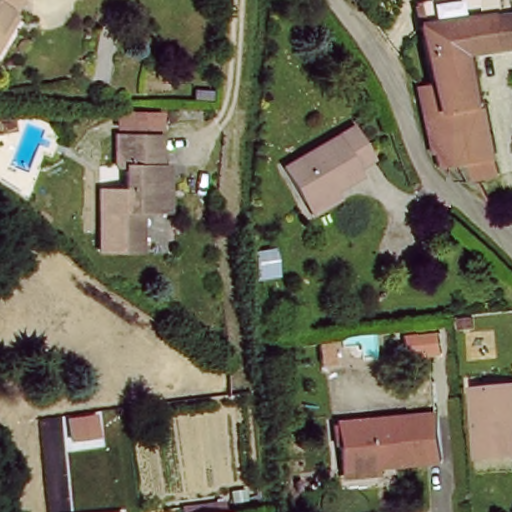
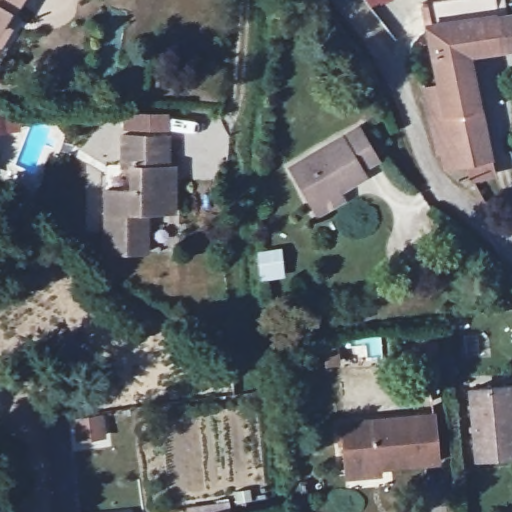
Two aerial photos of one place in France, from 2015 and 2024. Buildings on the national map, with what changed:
unchanged [(0,39),(0,0),(16,0),(8,14),(13,18),(0,39)]
unchanged [(428,27),(424,28),(421,5),(446,0),(502,0),(505,17),(428,27)]
unchanged [(477,55),(494,178),(469,181),(467,163),(444,166),(441,143),(454,141),(451,116),(437,118),(436,111),(424,111),(421,91),(432,89),(424,28),(428,27),(505,17),(512,16),(512,51),(477,55)]
unchanged [(319,213),(312,202),(292,167),(362,128),(381,159),(367,168),(370,174),(342,191),(346,199),(319,213)]
unchanged [(127,165),(126,134),(172,135),(171,163),(180,164),(178,211),(150,211),(150,253),(109,253),(109,189),(135,188),(135,166),(127,165)]
unchanged [(259,273),(256,248),(277,245),(281,271),(259,273)]
unchanged [(470,389),(512,384),(512,454),(479,458),(470,389)]
unchanged [(340,475),(336,427),(434,417),(439,467),(340,475)]

